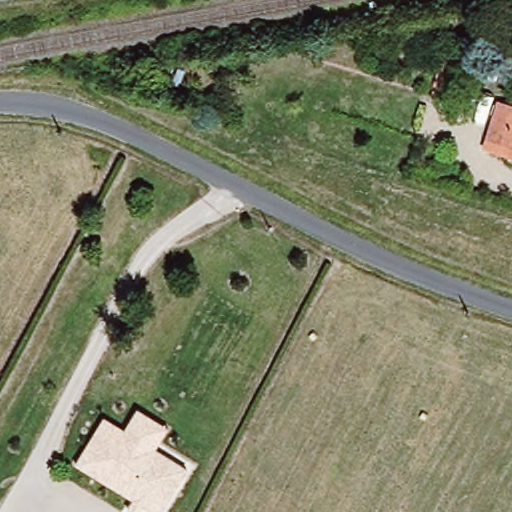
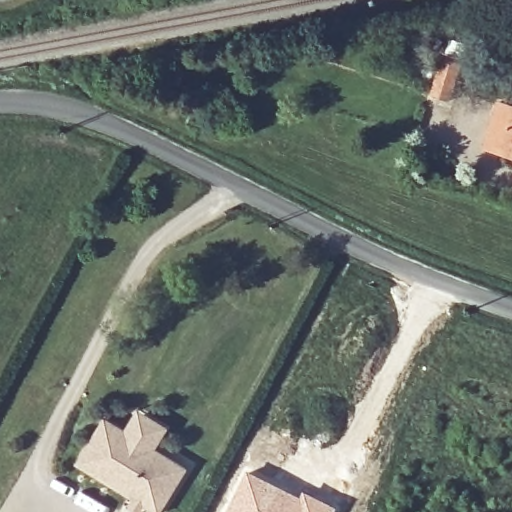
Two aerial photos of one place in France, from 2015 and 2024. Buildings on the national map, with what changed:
unchanged [(424,97),(427,85),(432,69),(451,75),(447,91),(444,105),(424,97)]
unchanged [(494,106),(512,111),(512,157),(482,149),(494,106)]
unchanged [(162,512),(146,512),(74,469),(101,422),(122,435),(135,413),(165,431),(153,453),(185,473),(162,512)]
new [(245,470),(299,495),(302,489),(337,506),(334,512),(224,512),(245,470)]

